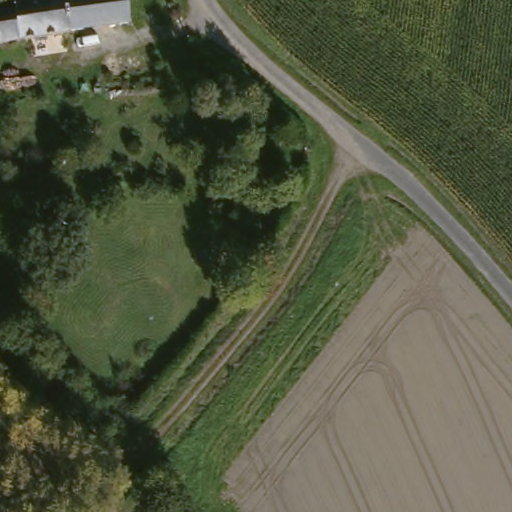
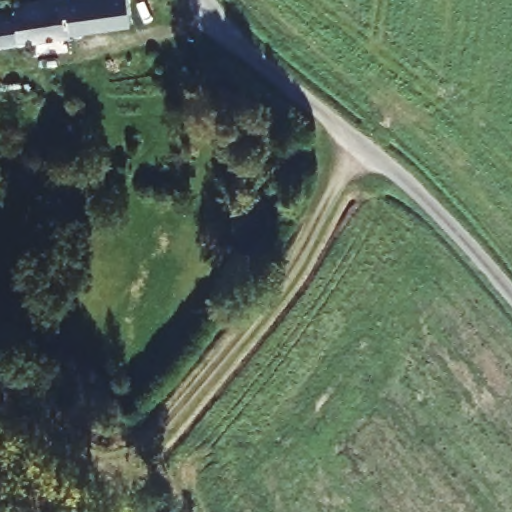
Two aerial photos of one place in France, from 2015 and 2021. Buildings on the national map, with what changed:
unchanged [(21,8),(20,2),(29,0),(129,0),(132,23),(0,45),(0,11),(21,8)]

